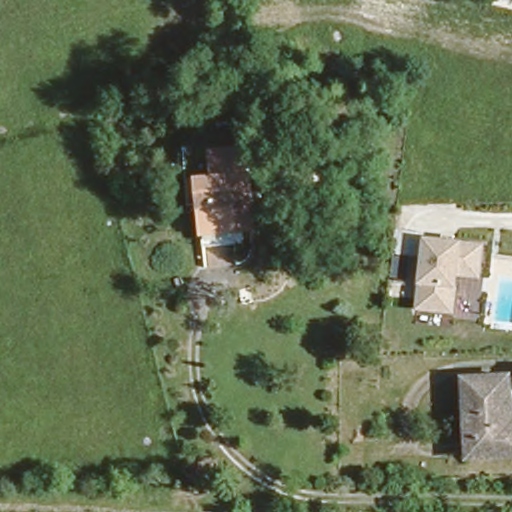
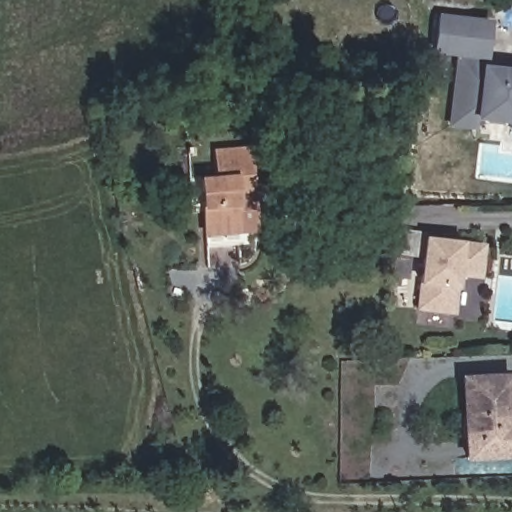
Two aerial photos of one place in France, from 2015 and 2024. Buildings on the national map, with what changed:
new [(439,16),(488,23),(483,59),(512,63),(512,124),(477,120),(475,128),(448,124),(457,53),(433,50),(439,16)]
unchanged [(195,252),(194,242),(190,183),(204,182),(204,155),(240,153),(240,198),(226,198),(228,239),(229,250),(195,252)]
unchanged [(486,244),(482,279),(460,277),(459,289),(455,314),(415,310),(417,285),(424,237),(465,242),(486,244)]
unchanged [(452,375),(500,373),(503,421),(512,421),(512,451),(458,453),(452,375)]

